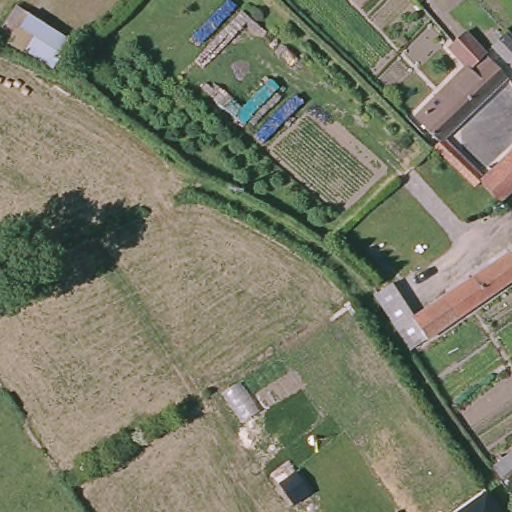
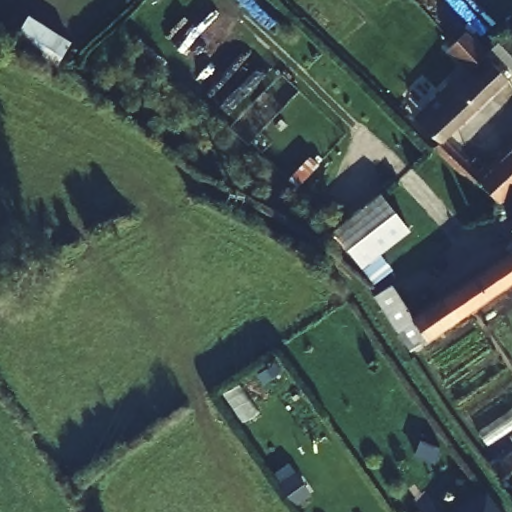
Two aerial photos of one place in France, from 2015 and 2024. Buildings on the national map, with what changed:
unchanged [(413,7),(405,0),(420,0),(413,7)]
unchanged [(6,50),(28,14),(67,42),(54,74),(6,50)]
unchanged [(512,48),(512,75),(485,48),(500,35),(512,48)]
unchanged [(503,77),(504,78),(445,139),(467,161),(483,178),(512,150),(512,189),(498,202),(478,183),(475,187),(458,172),(447,162),(431,146),(434,142),(417,128),(410,122),(438,94),(465,69),(455,59),(447,52),(464,37),(503,77)]
new [(346,248),(332,229),(380,192),(410,229),(380,252),(394,269),(377,281),(365,265),(346,248)]
unchanged [(512,226),(512,231),(510,228),(512,226)]
unchanged [(372,290),(385,284),(410,317),(512,252),(512,281),(405,347),(366,295),(372,290)]
unchanged [(500,512),(458,512),(486,492),(500,512)]

